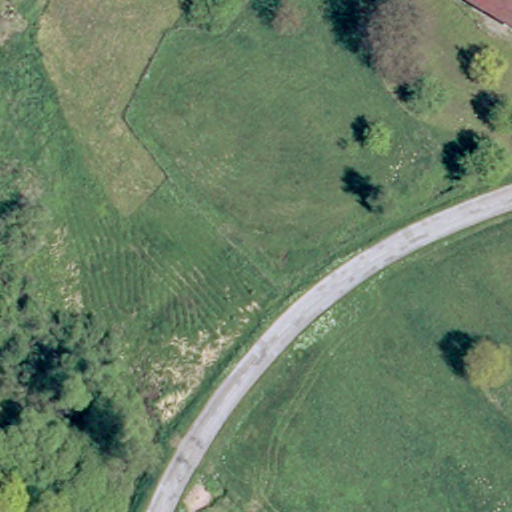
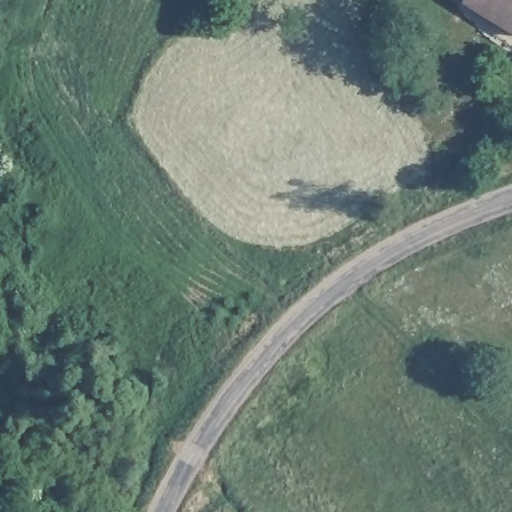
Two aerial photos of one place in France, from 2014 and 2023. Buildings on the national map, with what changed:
unchanged [(468,2),(465,0),(512,0),(512,31),(468,2)]

